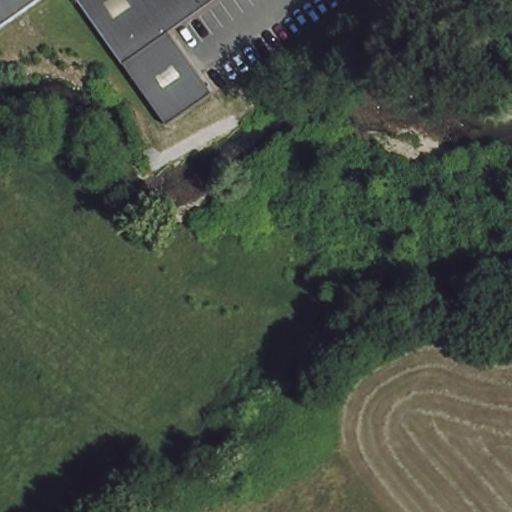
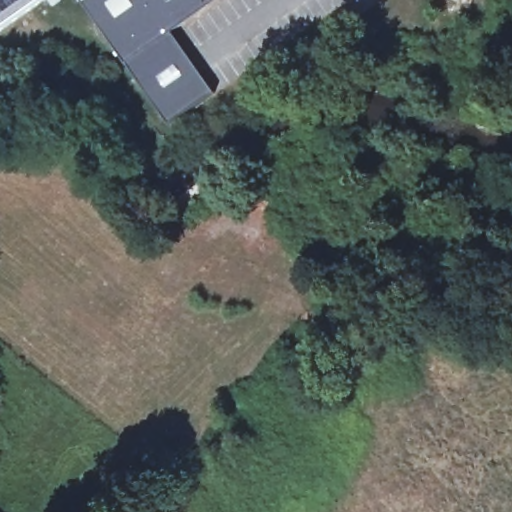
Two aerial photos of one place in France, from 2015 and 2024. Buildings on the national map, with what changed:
unchanged [(0,31),(0,0),(44,0),(0,31)]
unchanged [(170,32),(126,62),(82,0),(215,0),(170,32)]
unchanged [(213,93),(168,125),(126,62),(170,32),(213,93)]

